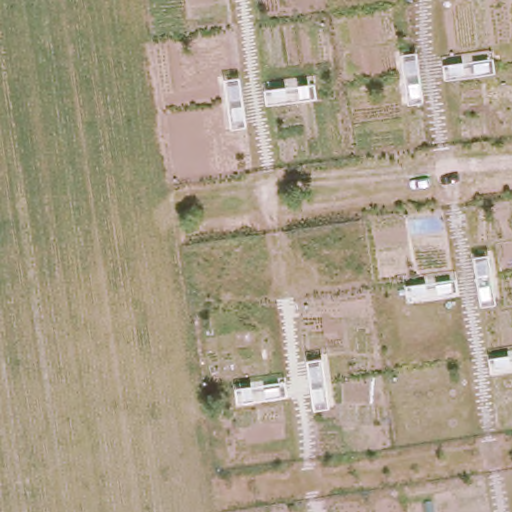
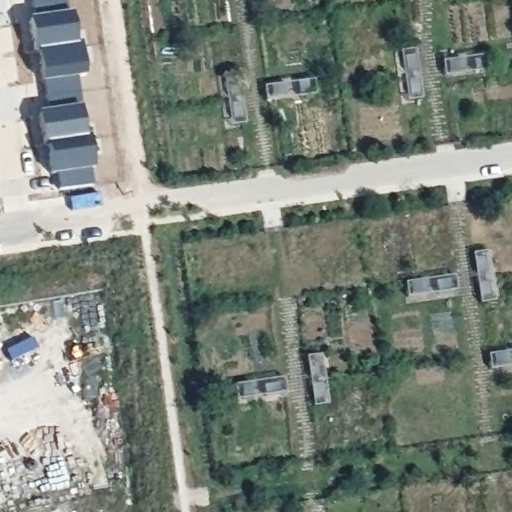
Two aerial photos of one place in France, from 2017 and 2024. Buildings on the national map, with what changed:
new [(58,191),(55,175),(48,177),(45,159),(43,148),(38,113),(46,112),(41,84),(37,54),(33,55),(28,20),(33,20),(30,0),(65,0),(67,16),(71,16),(75,46),(80,45),(84,79),(75,80),(85,140),(89,139),(93,171),(89,172),(93,187),(58,191)]
demolished [(509,105),(512,105),(512,126),(509,105)]

